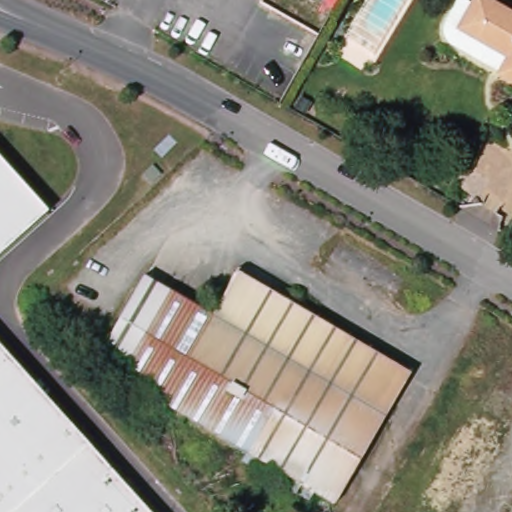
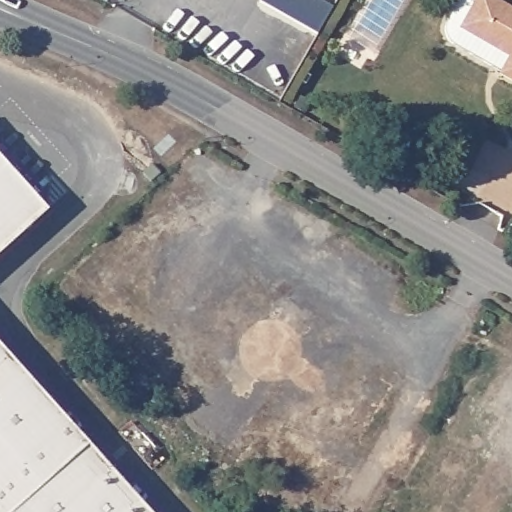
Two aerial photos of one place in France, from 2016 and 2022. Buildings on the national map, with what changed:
demolished [(311,33),(258,2),(260,0),(324,0),(328,2),(311,33)]
unchanged [(496,79),(497,77),(447,49),(446,47),(443,44),(442,40),(441,36),(441,31),(442,27),(456,2),(469,10),(475,0),(477,0),(512,20),(512,89),(496,79)]
unchanged [(0,253),(0,161),(46,211),(0,253)]
demolished [(408,373),(333,504),(259,460),(256,467),(242,460),(246,453),(185,417),(180,425),(173,420),(177,412),(117,378),(122,367),(98,353),(143,275),(211,315),(237,267),(316,313),(313,317),(408,373)]
unchanged [(0,512),(0,349),(146,512),(0,512)]
demolished [(432,512),(420,504),(476,406),(507,425),(457,512),(432,512)]
demolished [(511,512),(512,511),(512,512),(511,512)]

